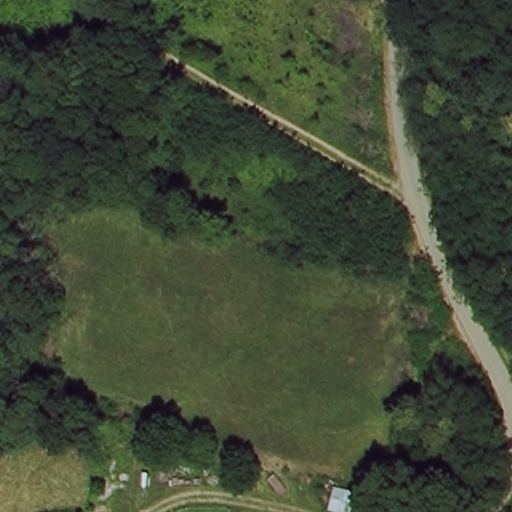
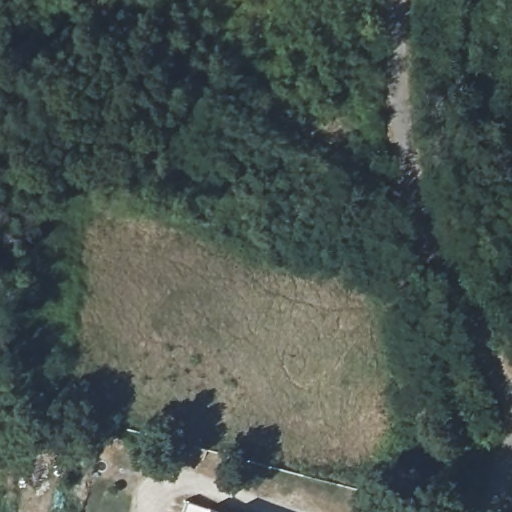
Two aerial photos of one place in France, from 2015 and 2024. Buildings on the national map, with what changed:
new [(207,510),(214,512),(180,512),(184,502),(207,510)]

